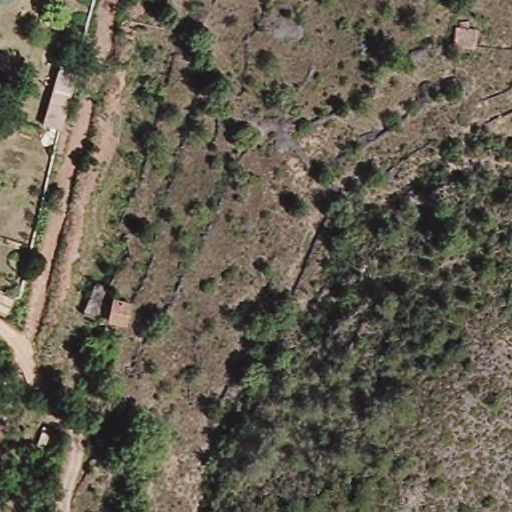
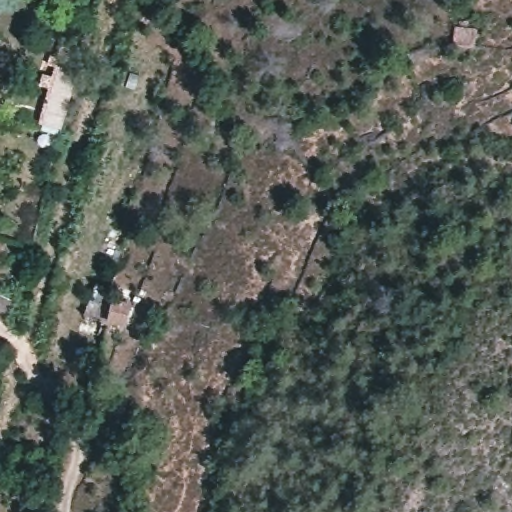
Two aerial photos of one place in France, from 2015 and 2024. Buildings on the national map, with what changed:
unchanged [(69,88),(56,129),(42,125),(55,83),(69,88)]
unchanged [(112,325),(100,321),(107,298),(127,304),(122,327),(112,325)]

